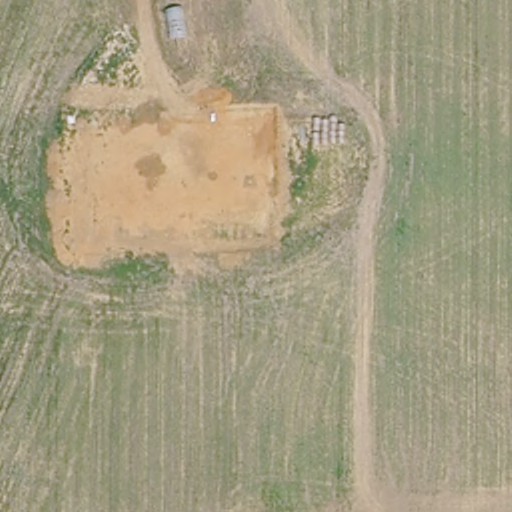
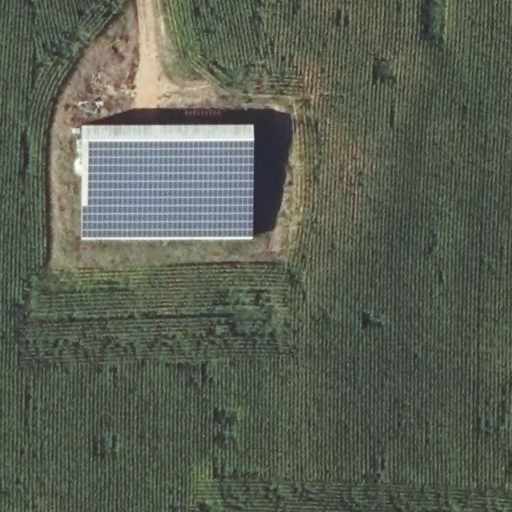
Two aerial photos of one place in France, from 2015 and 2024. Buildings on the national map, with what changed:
new [(247,121),(248,235),(77,236),(76,122),(247,121)]
demolished [(314,131),(318,190),(290,187),(280,134),(314,131)]

